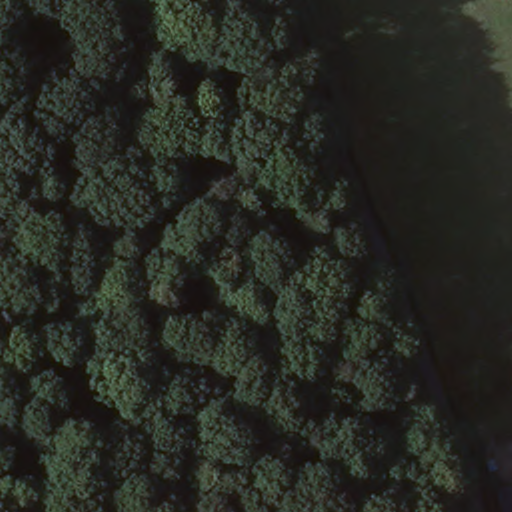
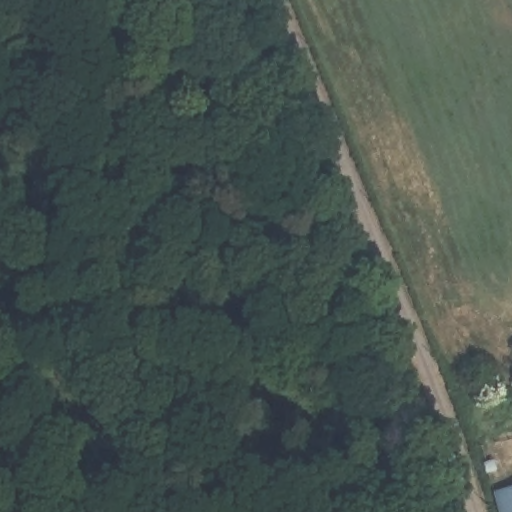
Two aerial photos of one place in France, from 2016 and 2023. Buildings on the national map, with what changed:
unchanged [(512,485),(512,512),(498,512),(491,491),(512,485)]

